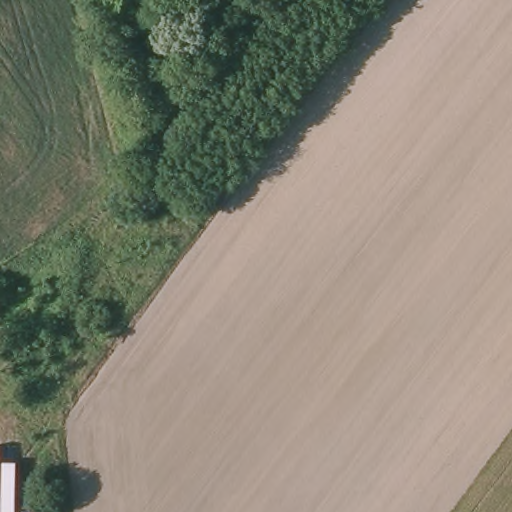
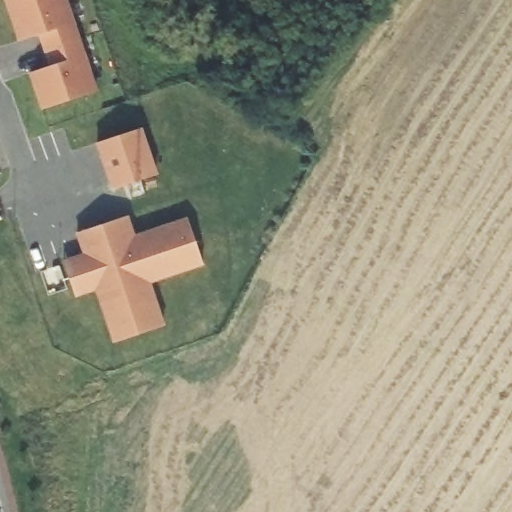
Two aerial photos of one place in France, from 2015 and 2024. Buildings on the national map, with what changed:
new [(96,91),(42,110),(30,73),(50,66),(39,35),(19,41),(5,0),(65,0),(96,91)]
new [(141,129),(156,175),(113,190),(97,143),(141,129)]
new [(127,217),(133,237),(188,219),(203,265),(148,282),(163,326),(114,343),(95,289),(75,296),(66,271),(63,262),(84,255),(77,234),(127,217)]

